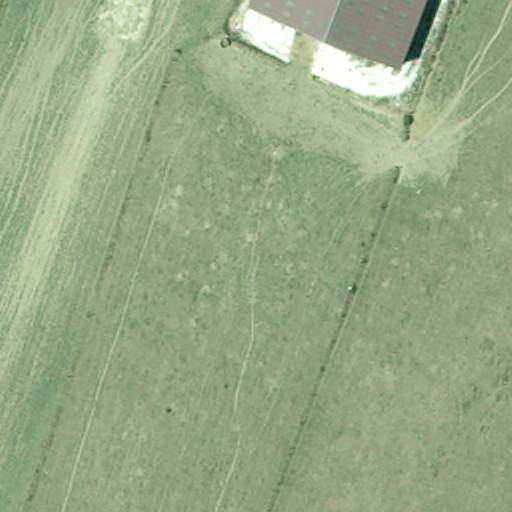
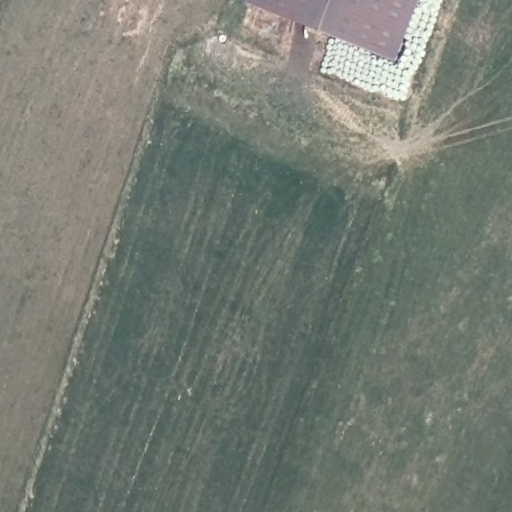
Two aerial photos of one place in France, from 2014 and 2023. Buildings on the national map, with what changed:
unchanged [(252,0),(423,0),(400,62),(251,3),(252,0)]

